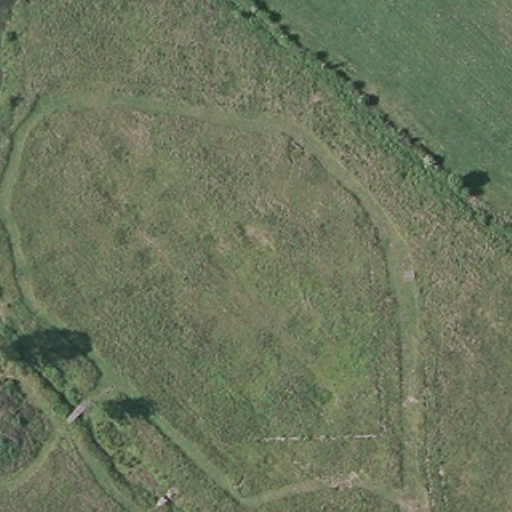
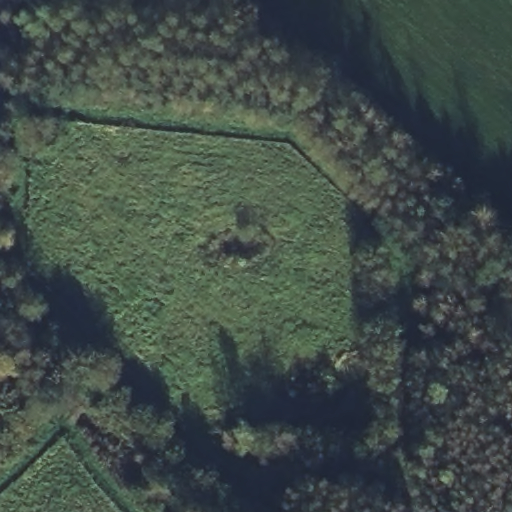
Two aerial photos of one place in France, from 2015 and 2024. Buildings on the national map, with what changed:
[]

